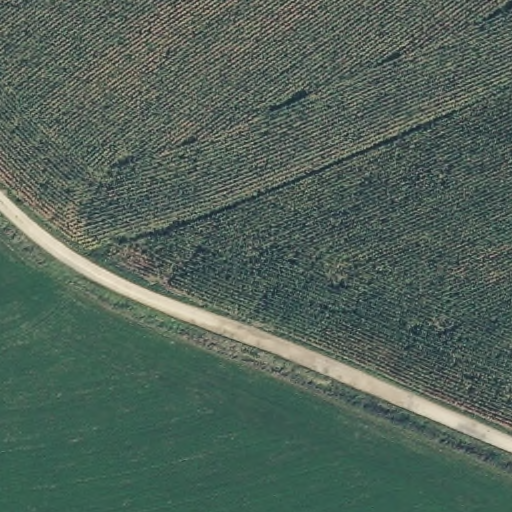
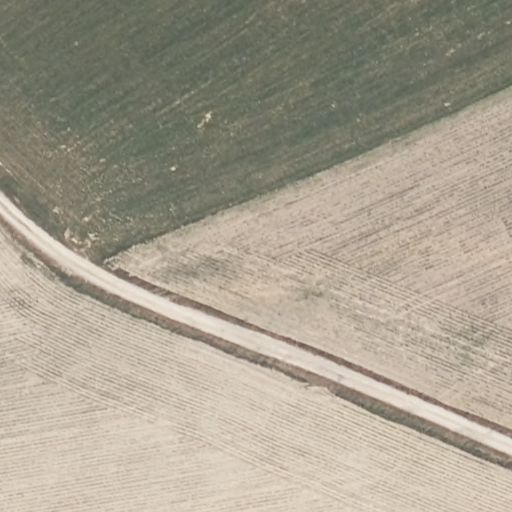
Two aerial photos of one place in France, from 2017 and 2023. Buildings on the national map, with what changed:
[]

